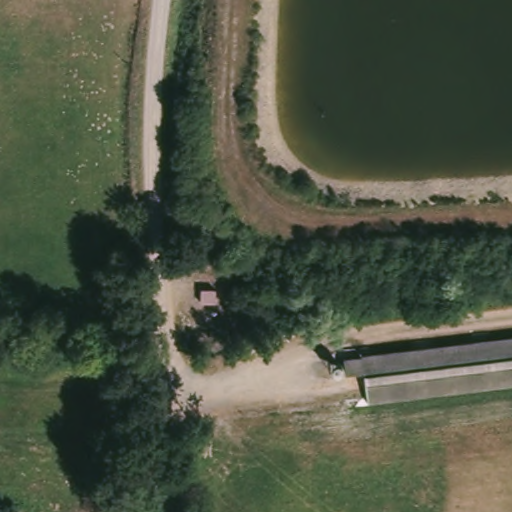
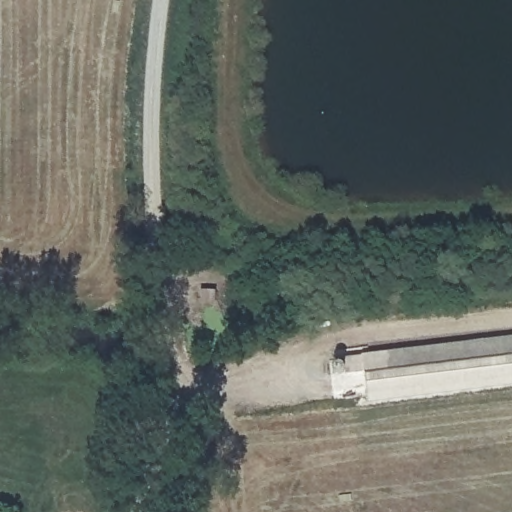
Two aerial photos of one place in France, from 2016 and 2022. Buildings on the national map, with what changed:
unchanged [(351,378),(335,380),(333,364),(512,342),(512,386),(352,404),(351,378)]

